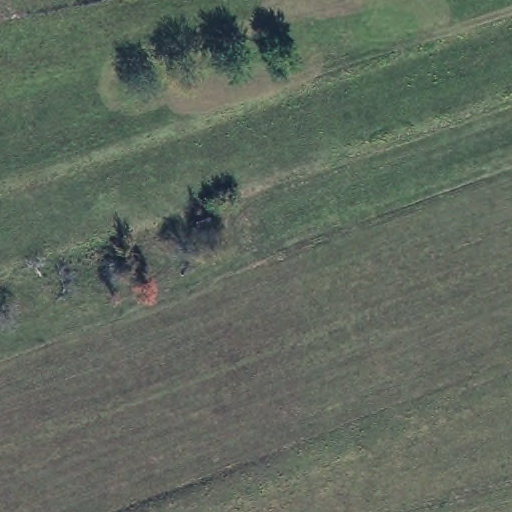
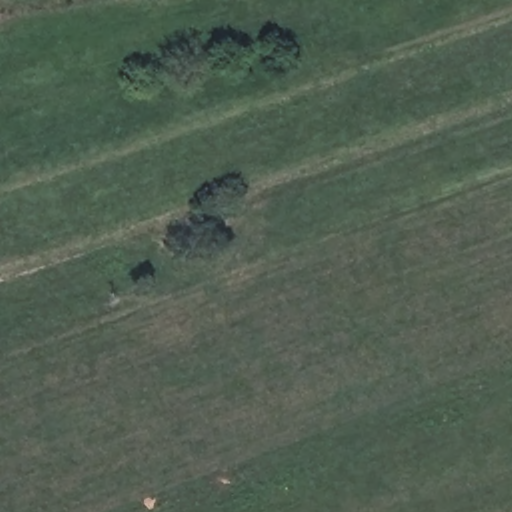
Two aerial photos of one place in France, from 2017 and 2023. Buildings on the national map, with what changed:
unchanged [(209,213),(213,225),(198,230),(193,218),(209,213)]

